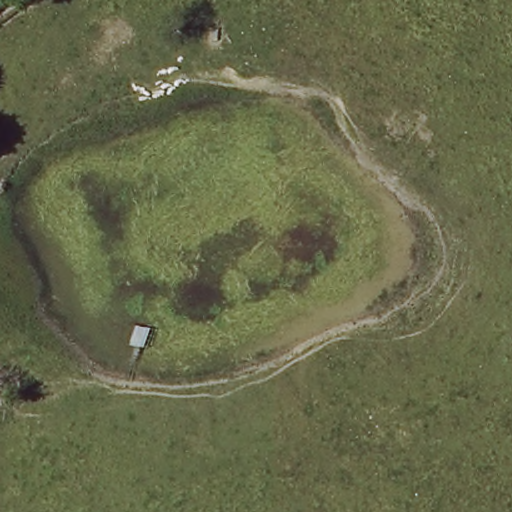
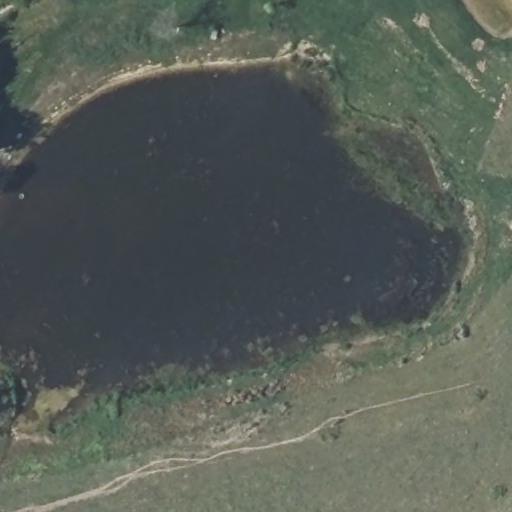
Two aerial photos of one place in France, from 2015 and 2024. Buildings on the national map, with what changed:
[]

